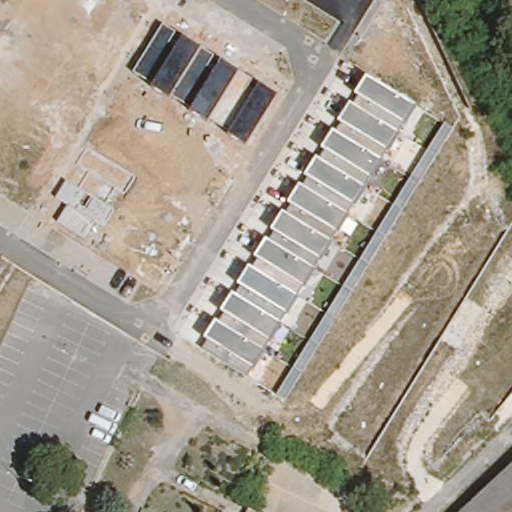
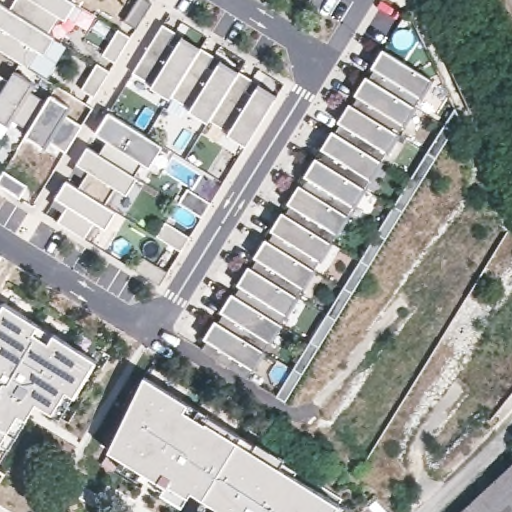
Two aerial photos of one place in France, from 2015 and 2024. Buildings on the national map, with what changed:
new [(27,68),(0,51),(0,5),(10,10),(16,0),(69,0),(75,4),(65,21),(58,17),(48,34),(55,38),(44,55),(38,51),(27,68)]
new [(151,4),(136,30),(123,22),(136,0),(145,0),(151,4)]
unchanged [(162,24),(183,37),(201,48),(221,61),(238,71),(259,86),(276,97),(248,145),(229,135),(209,122),(189,112),(168,99),(150,89),(152,85),(133,74),(162,24)]
new [(115,64),(102,56),(118,30),(131,38),(115,64)]
new [(366,77),(383,49),(433,79),(417,108),(366,77)]
new [(94,98),(81,90),(97,64),(110,72),(94,98)]
unchanged [(14,72),(34,85),(30,92),(46,102),(28,131),(12,121),(8,127),(0,122),(0,94),(10,79),(14,72)]
new [(0,94),(0,73),(10,79),(0,94)]
unchanged [(203,350),(210,342),(205,338),(366,77),(417,108),(253,368),(248,377),(203,350)]
new [(28,131),(46,102),(51,95),(71,107),(66,115),(83,125),(65,154),(49,143),(45,150),(25,137),(28,131)]
new [(156,143),(146,160),(136,155),(126,172),(99,155),(110,138),(98,130),(108,113),(156,143)]
unchanged [(343,288),(360,261),(376,234),(394,207),(410,180),(427,152),(444,125),(452,131),(436,158),(419,185),(402,212),(386,239),(369,266),(352,293),(335,320),(319,348),(301,375),(285,402),(276,397),(293,369),(310,342),(326,315),(343,288)]
unchanged [(99,155),(126,172),(136,177),(125,194),(115,189),(105,206),(78,189),(88,172),(76,165),(87,148),(99,155)]
new [(26,187),(18,199),(0,188),(0,177),(3,172),(26,187)]
unchanged [(104,228),(95,223),(84,240),(57,223),(67,206),(55,199),(66,182),(78,189),(105,206),(115,211),(104,228)]
new [(186,189),(211,204),(201,218),(178,203),(186,189)]
new [(190,238),(181,252),(156,237),(165,223),(190,238)]
new [(0,255),(2,257),(0,260),(0,255)]
new [(168,272),(160,286),(136,271),(145,257),(168,272)]
new [(38,324),(53,333),(93,358),(71,393),(58,414),(51,410),(35,399),(24,416),(8,442),(0,455),(0,312),(6,303),(38,324)]
new [(191,494),(188,500),(183,509),(155,492),(153,495),(117,473),(122,464),(159,487),(106,455),(143,378),(187,405),(183,412),(188,403),(210,416),(208,418),(255,447),(256,445),(278,457),(276,460),(342,501),(338,507),(346,512),(214,512),(216,509),(191,494)]
unchanged [(464,512),(512,467),(512,512),(464,512)]
new [(202,512),(198,509),(203,501),(216,509),(214,512),(202,512)]
demolished [(250,512),(253,508),(262,512),(250,512)]

